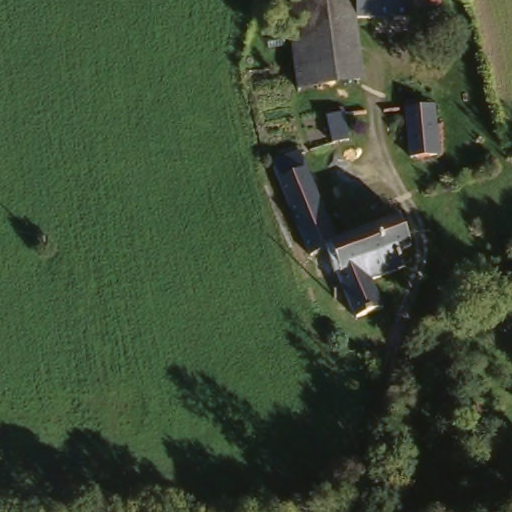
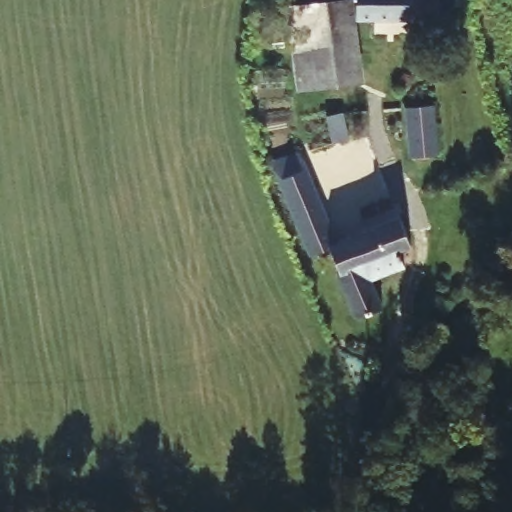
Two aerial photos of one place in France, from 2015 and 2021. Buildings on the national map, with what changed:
unchanged [(359,29),(356,6),(355,0),(444,0),(446,24),(359,29)]
unchanged [(289,11),(356,6),(359,29),(367,85),(326,89),(298,93),(296,78),(289,11)]
unchanged [(444,156),(424,161),(416,120),(414,113),(434,109),(444,156)]
unchanged [(358,314),(343,321),(328,281),(328,280),(332,278),(324,254),(311,259),(303,237),(279,174),(276,163),(302,153),(305,160),(341,250),(401,225),(411,253),(397,258),(402,272),(364,289),(371,309),(364,312),(358,314)]

